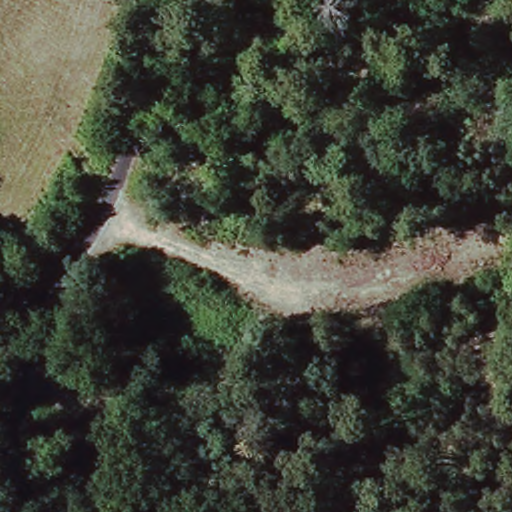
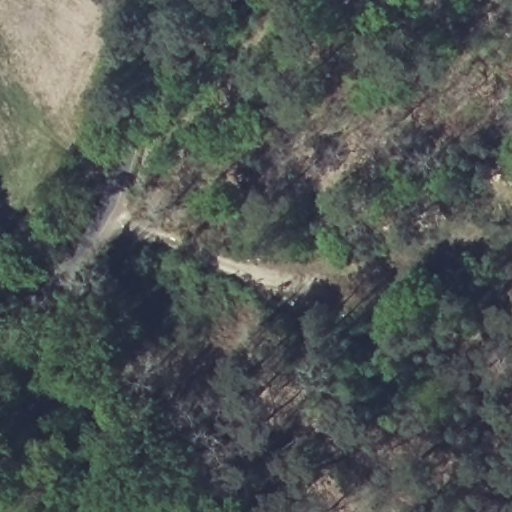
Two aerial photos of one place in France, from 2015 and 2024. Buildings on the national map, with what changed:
[]

